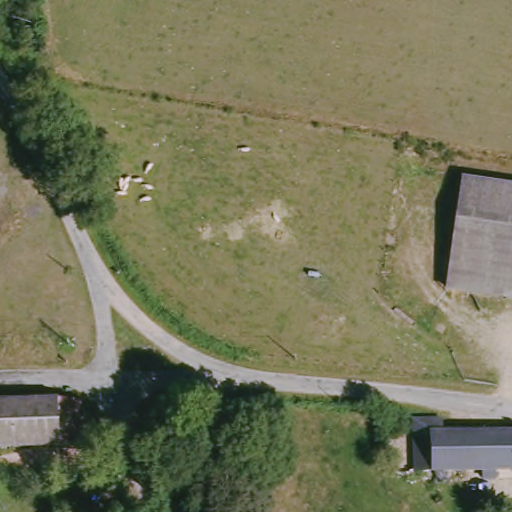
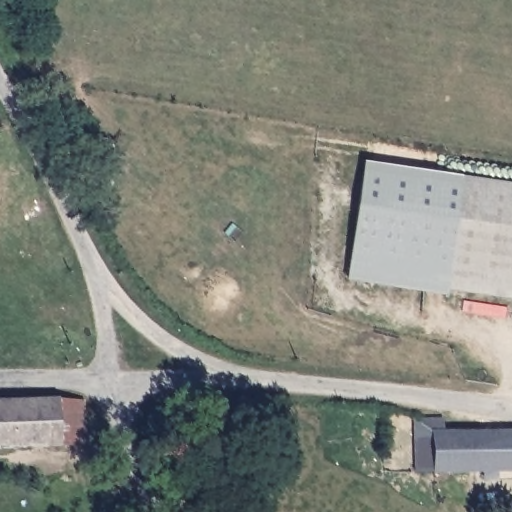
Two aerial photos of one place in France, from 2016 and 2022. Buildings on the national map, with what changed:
new [(450,288),(449,298),(348,280),(364,160),(466,176),(450,288)]
unchanged [(512,298),(450,288),(466,176),(512,183),(512,298)]
unchanged [(83,401),(84,444),(59,445),(58,402),(83,401)]
unchanged [(0,447),(0,403),(58,402),(59,445),(0,447)]
unchanged [(419,417),(447,419),(447,431),(512,431),(512,471),(420,470),(419,417)]

